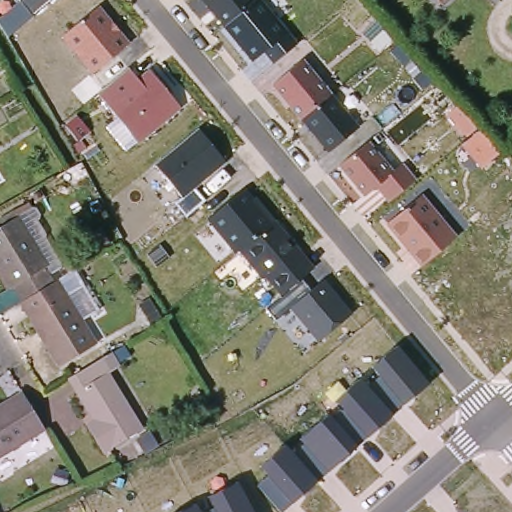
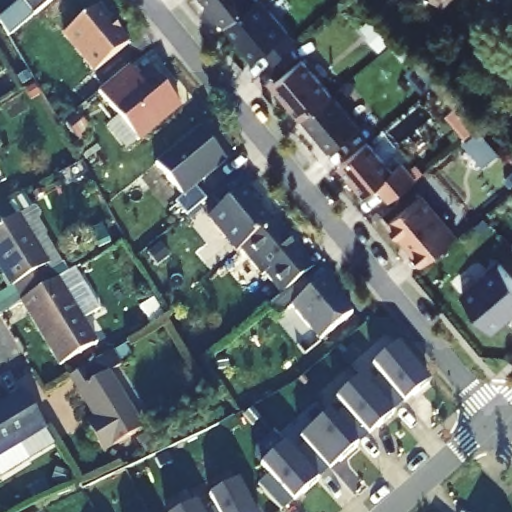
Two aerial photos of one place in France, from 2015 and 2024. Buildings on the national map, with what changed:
unchanged [(0,20),(0,18),(21,1),(20,0),(50,0),(11,33),(0,20)]
unchanged [(291,29),(301,40),(273,64),(264,52),(253,61),(201,0),(262,0),(289,30),(291,29)]
unchanged [(434,0),(446,0),(440,6),(434,0)]
unchanged [(130,44),(93,74),(62,36),(99,5),(130,44)]
unchanged [(334,95),(333,96),(361,127),(328,152),(294,110),(292,111),(271,85),(304,59),(334,95)]
unchanged [(138,79),(150,69),(182,108),(126,152),(105,126),(117,117),(99,93),(130,69),(138,79)]
unchanged [(502,152),(483,169),(462,145),(467,140),(445,116),(457,104),(502,152)]
unchanged [(226,161),(195,187),(207,201),(187,217),(175,204),(183,196),(157,164),(199,130),(226,161)]
unchanged [(394,170),(403,162),(417,179),(389,202),(378,190),(373,190),(363,196),(338,166),(368,141),(394,170)]
unchanged [(351,309),(349,317),(318,342),(290,308),(275,320),(266,308),(279,297),(238,250),(235,253),(208,219),(244,187),(316,267),(302,279),(311,290),(325,279),(351,309)]
unchanged [(460,236),(422,266),(386,222),(423,194),(460,236)]
unchanged [(56,372),(19,310),(18,310),(9,295),(0,281),(0,234),(15,225),(30,216),(33,217),(37,224),(36,227),(34,229),(43,244),(42,247),(64,282),(57,286),(94,351),(56,372)]
new [(493,330),(461,293),(498,263),(512,281),(512,315),(493,330)]
unchanged [(165,315),(144,328),(126,298),(146,285),(165,315)]
unchanged [(427,382),(393,410),(371,383),(379,376),(372,367),(395,345),(427,382)]
unchanged [(115,361),(122,375),(111,382),(144,440),(104,463),(93,442),(101,437),(72,386),(115,361)]
unchanged [(391,415),(360,442),(337,417),(343,411),(334,401),(359,378),(391,415)]
unchanged [(23,403),(42,434),(0,459),(0,409),(20,397),(23,403)]
unchanged [(354,447),(319,478),(295,451),(303,445),(298,439),(326,415),(354,447)]
unchanged [(317,481),(295,502),(293,500),(282,510),(258,485),(267,475),(260,467),(283,445),(317,481)]
unchanged [(252,512),(205,512),(214,507),(208,495),(238,480),(252,512)]
unchanged [(199,512),(182,512),(196,505),(199,512)]

